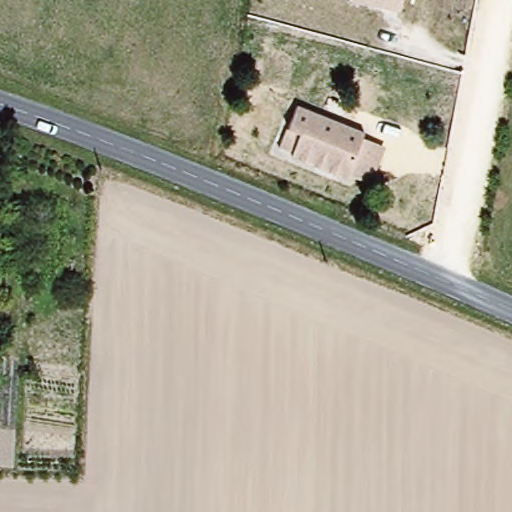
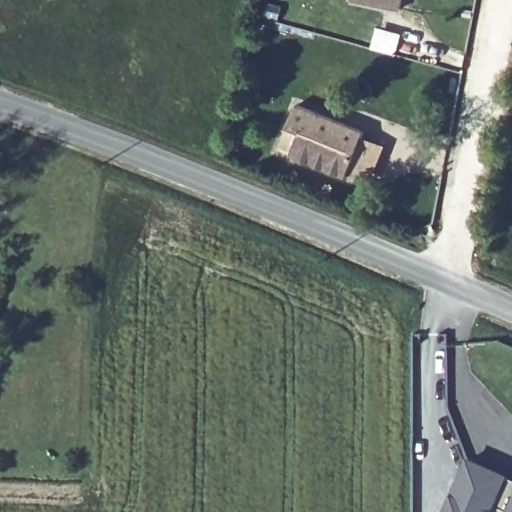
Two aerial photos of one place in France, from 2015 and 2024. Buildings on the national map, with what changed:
unchanged [(350,2),(350,0),(403,0),(401,12),(350,2)]
unchanged [(367,132),(349,177),(293,153),(303,132),(290,126),(300,105),(300,103),(349,125),(367,132)]
unchanged [(388,143),(370,187),(349,177),(367,132),(388,143)]
new [(464,463),(512,484),(512,512),(443,512),(464,463)]

